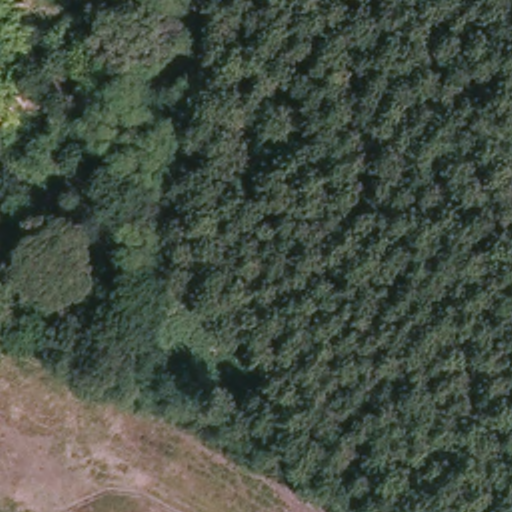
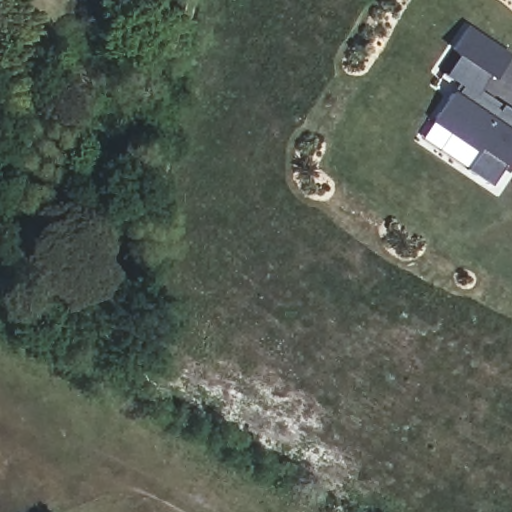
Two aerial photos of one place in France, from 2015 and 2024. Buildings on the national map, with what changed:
new [(490,80),(481,91),(512,112),(512,167),(509,171),(505,169),(494,187),(469,171),(479,154),(430,121),(456,84),(446,76),(460,56),(452,51),(468,26),(512,55),(495,82),(490,80)]

